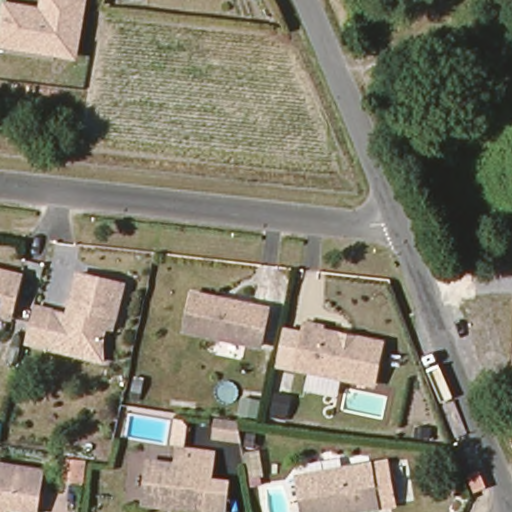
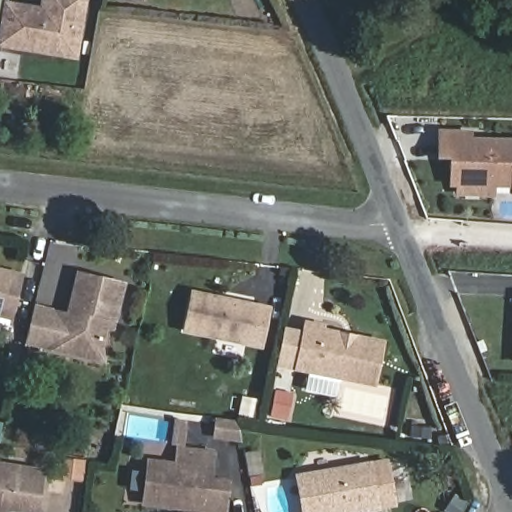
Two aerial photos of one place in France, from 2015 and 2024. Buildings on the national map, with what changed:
unchanged [(8,2),(39,6),(40,0),(88,0),(76,61),(0,49),(0,0),(8,0),(8,2)]
new [(436,160),(437,130),(472,131),(472,137),(512,137),(512,198),(511,197),(511,189),(494,189),(493,197),(454,196),(454,187),(448,187),(448,160),(436,160)]
unchanged [(5,318),(0,317),(0,272),(16,276),(5,318)]
unchanged [(60,356),(61,351),(45,347),(25,342),(34,307),(53,312),(68,316),(79,274),(122,285),(114,319),(102,366),(60,356)]
unchanged [(186,292),(262,308),(255,345),(179,330),(186,292)]
unchanged [(316,330),(336,334),(347,337),(375,342),(367,383),(350,380),(291,367),(300,322),(317,326),(316,330)]
unchanged [(236,438),(211,435),(214,417),(234,420),(236,438)]
unchanged [(201,509),(139,502),(143,462),(171,465),(173,448),(208,452),(205,472),(223,473),(219,511),(201,509)]
unchanged [(382,462),(390,503),(341,512),(299,512),(293,477),(382,462)]
unchanged [(30,512),(24,512),(0,508),(0,465),(36,472),(30,512)]

